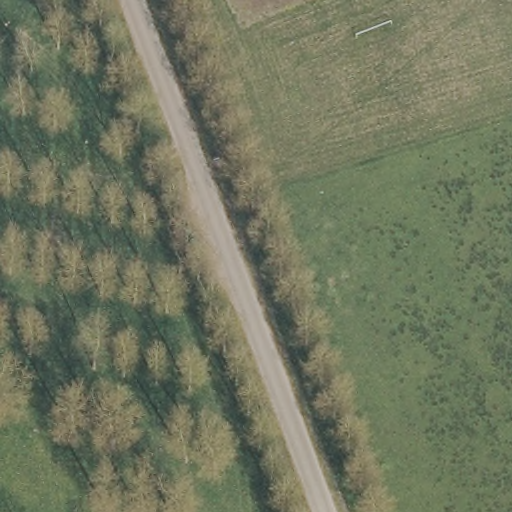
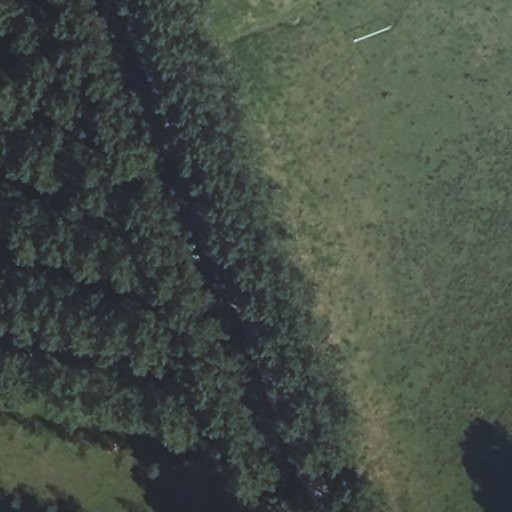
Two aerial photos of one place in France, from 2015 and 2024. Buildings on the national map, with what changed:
[]

